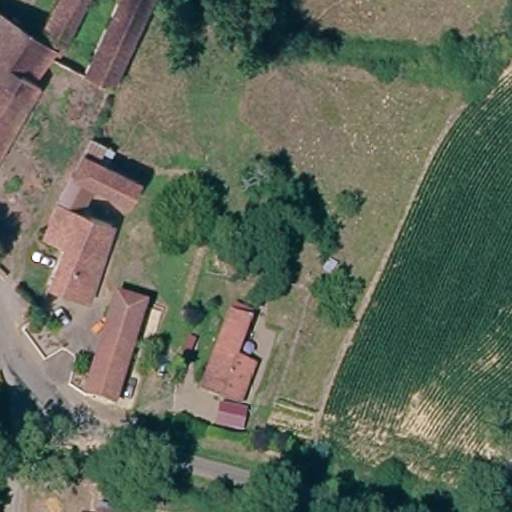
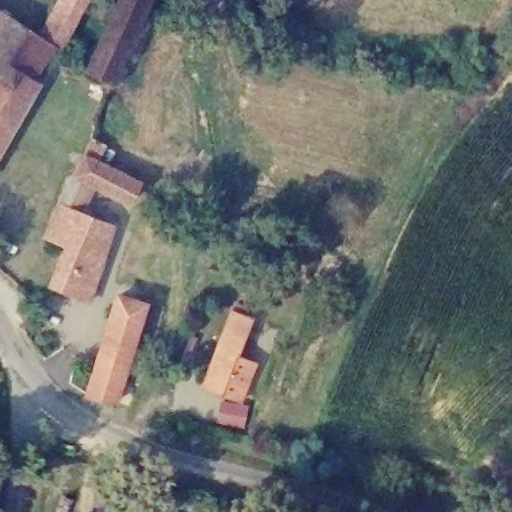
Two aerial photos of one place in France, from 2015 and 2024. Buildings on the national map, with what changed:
unchanged [(62,0),(86,0),(66,41),(55,36),(39,69),(28,63),(23,73),(0,60),(0,0),(9,0),(51,21),(62,0)]
unchanged [(94,65),(125,0),(150,0),(116,75),(94,65)]
unchanged [(28,63),(39,69),(49,75),(0,160),(0,60),(23,73),(28,63)]
unchanged [(141,172),(129,198),(93,182),(81,209),(113,223),(89,301),(50,283),(65,241),(45,232),(86,149),(141,172)]
unchanged [(87,382),(118,295),(146,305),(117,398),(87,382)]
unchanged [(204,387),(233,311),(242,314),(256,320),(244,352),(252,356),(262,360),(245,403),(235,399),(213,390),(204,387)]
unchanged [(0,385),(0,350),(10,373),(0,385)]

